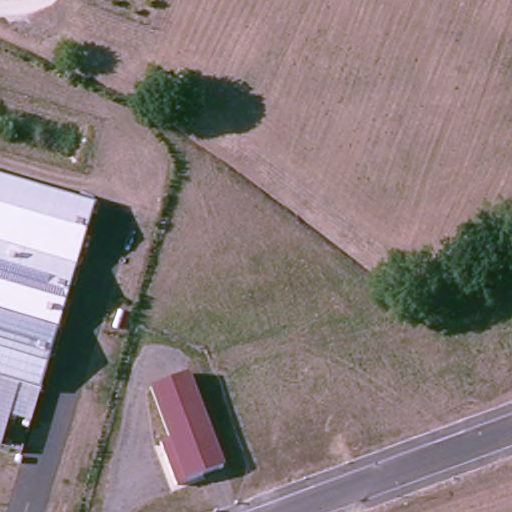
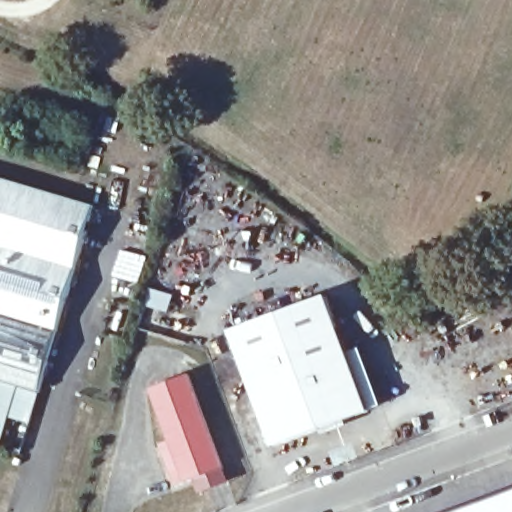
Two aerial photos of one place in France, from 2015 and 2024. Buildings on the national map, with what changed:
unchanged [(0,380),(0,178),(95,206),(40,391),(0,380)]
new [(328,295),(350,353),(361,349),(381,405),(370,410),(273,446),(231,330),(328,295)]
unchanged [(175,485),(160,443),(169,439),(150,390),(189,375),(226,467),(175,485)]
unchanged [(30,423),(7,417),(0,445),(0,380),(40,391),(30,423)]
new [(450,512),(512,490),(512,512),(450,512)]

